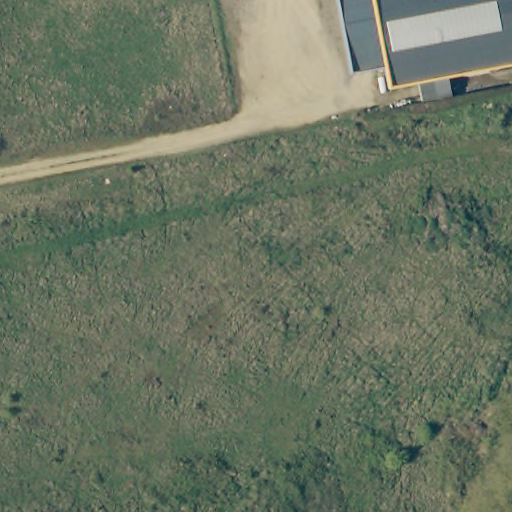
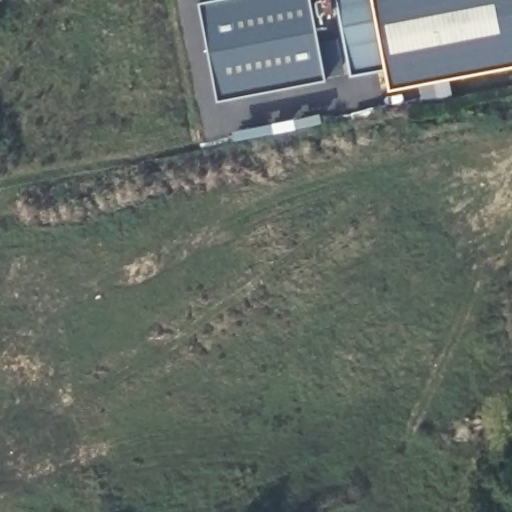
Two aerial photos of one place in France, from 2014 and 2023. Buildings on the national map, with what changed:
new [(325,81),(217,102),(197,4),(219,0),(312,0),(320,42),(335,40),(341,69),(323,75),(325,81)]
unchanged [(335,0),(373,0),(388,69),(352,77),(335,0)]
unchanged [(388,69),(373,0),(512,0),(512,69),(393,91),(388,69)]

